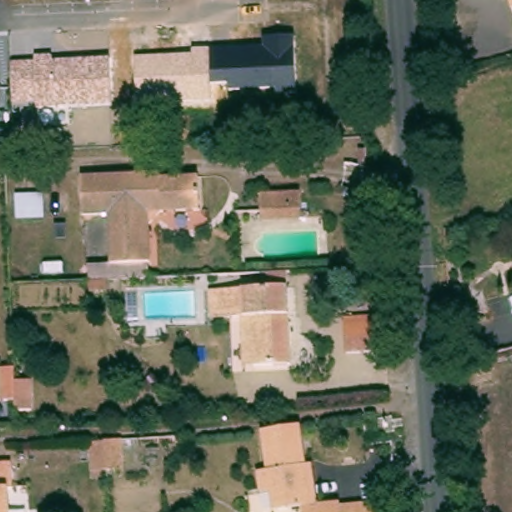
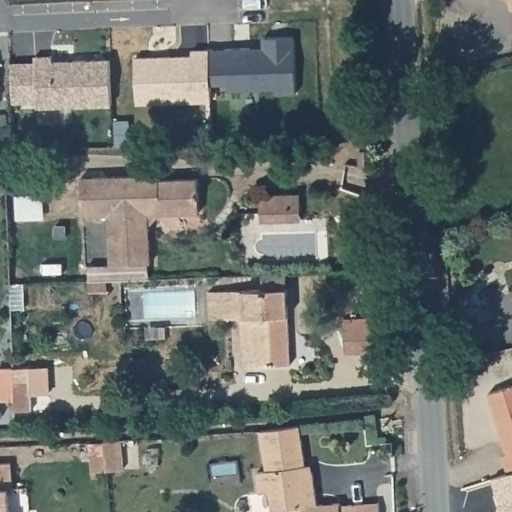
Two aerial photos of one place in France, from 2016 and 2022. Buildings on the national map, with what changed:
unchanged [(511,0),(512,0),(512,5),(511,0)]
unchanged [(135,58),(192,56),(191,50),(264,46),(264,40),(295,39),(297,89),(226,91),(225,85),(211,85),(211,100),(136,104),(135,58)]
unchanged [(11,65),(34,64),(34,57),(55,56),(56,62),(111,60),(112,107),(34,110),(34,101),(13,102),(11,65)]
unchanged [(165,173),(165,178),(203,176),(205,210),(166,212),(154,226),(155,262),(115,264),(113,214),(87,215),(86,176),(165,173)]
unchanged [(266,215),(265,190),(305,189),(306,214),(266,215)]
unchanged [(91,280),(90,267),(115,266),(116,279),(91,280)]
unchanged [(246,317),(235,317),(217,318),(215,318),(214,290),(216,290),(234,290),(292,287),(295,364),(258,365),(247,366),(246,317)]
unchanged [(362,351),(360,325),(386,323),(388,350),(362,351)]
unchanged [(14,380),(30,379),(31,408),(16,410),(15,401),(4,401),(0,401),(0,369),(14,368),(14,380)]
new [(512,384),(512,471),(508,472),(502,454),(507,452),(488,391),(512,384)]
unchanged [(312,472),(318,471),(323,503),(306,506),(278,510),(275,490),(265,492),(262,471),(272,470),(266,430),(305,425),(312,472)]
unchanged [(95,443),(110,441),(110,440),(126,440),(128,467),(112,469),(97,470),(95,443)]
unchanged [(13,489),(15,512),(0,512),(0,463),(16,462),(18,488),(13,489)]
new [(499,502),(491,477),(508,472),(512,471),(512,512),(496,512),(499,502)]
unchanged [(385,512),(306,512),(306,506),(323,503),(345,502),(346,505),(384,502),(385,512)]

